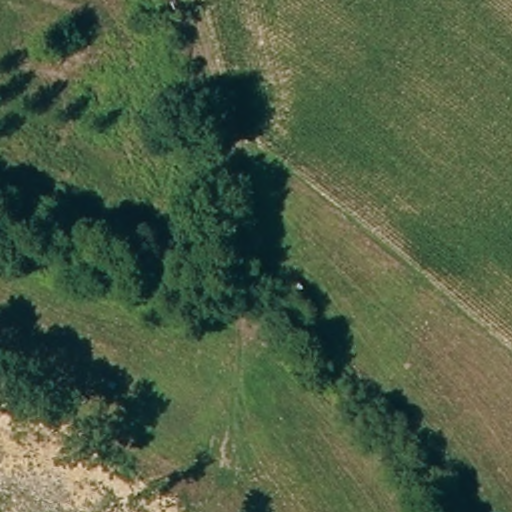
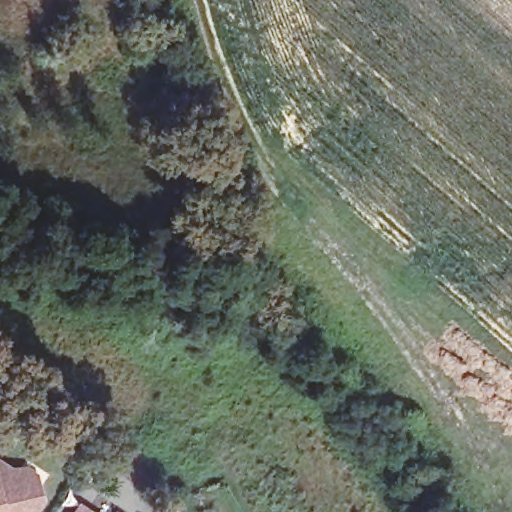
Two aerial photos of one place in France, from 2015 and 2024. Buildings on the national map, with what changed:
new [(11,470),(24,467),(36,475),(39,488),(41,499),(33,512),(0,512),(0,463),(11,470)]
new [(90,512),(74,512),(79,504),(90,512)]

